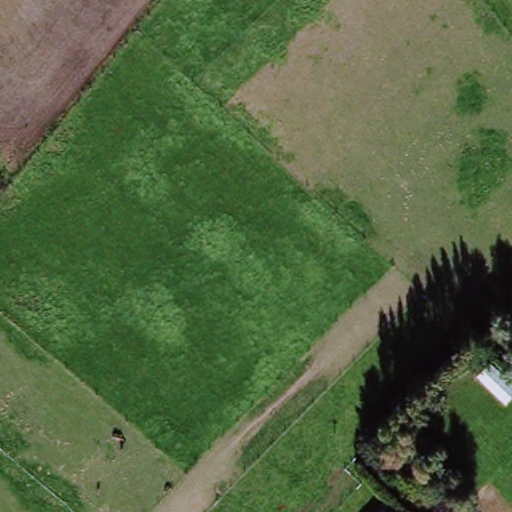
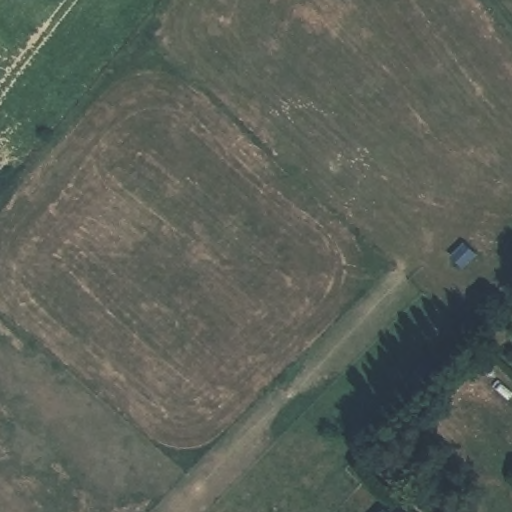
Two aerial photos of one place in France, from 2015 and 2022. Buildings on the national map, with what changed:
unchanged [(390,511),(391,512),(390,512),(390,511)]

